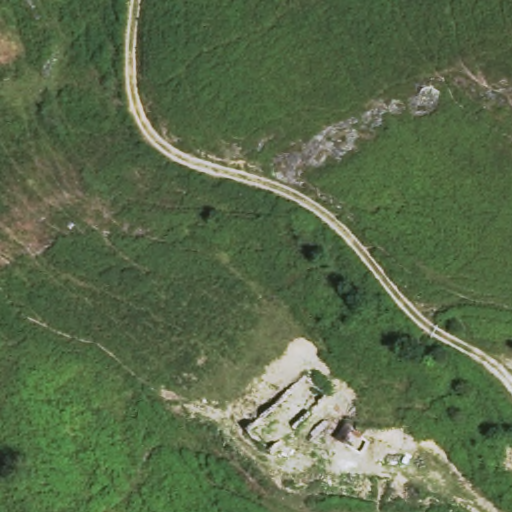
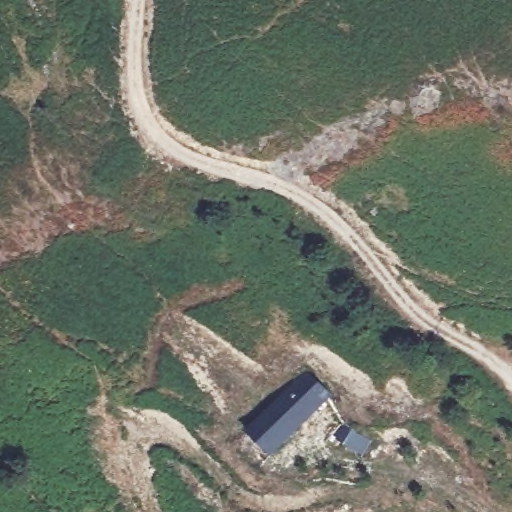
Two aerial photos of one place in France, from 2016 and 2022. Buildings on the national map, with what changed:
new [(245,434),(297,370),(321,388),(267,449),(245,434)]
demolished [(327,398),(268,456),(242,429),(300,372),(327,398)]
new [(342,415),(356,425),(341,443),(328,433),(342,415)]

